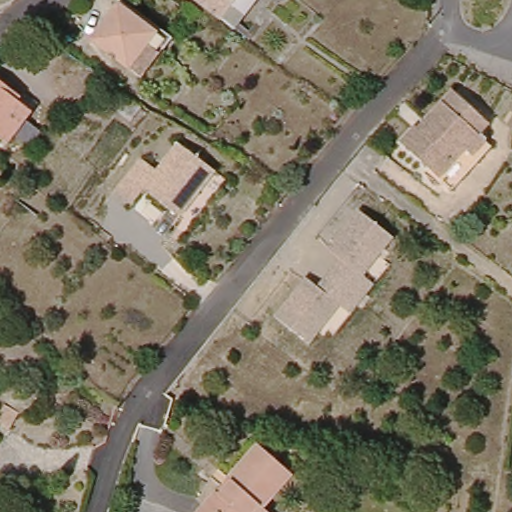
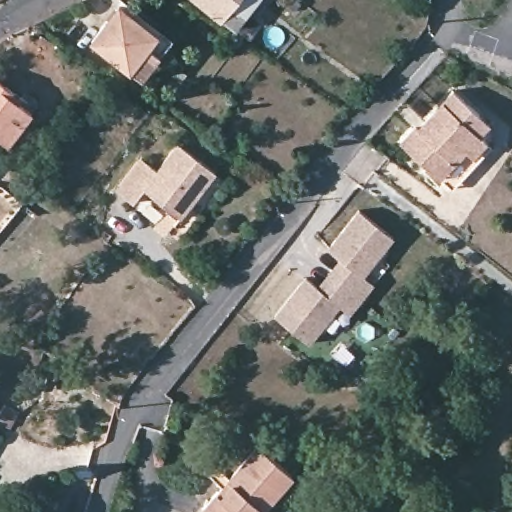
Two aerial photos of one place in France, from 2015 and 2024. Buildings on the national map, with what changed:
unchanged [(88,33),(114,1),(114,0),(120,0),(153,27),(150,31),(144,37),(156,47),(135,72),(124,62),(88,33)]
unchanged [(250,6),(232,27),(221,17),(212,10),(210,14),(201,8),(205,3),(201,0),(254,0),(250,6)]
unchanged [(17,101),(30,111),(7,142),(0,137),(0,81),(20,96),(17,101)]
unchanged [(412,153),(399,142),(414,124),(417,126),(451,86),(477,110),(487,118),(478,130),(484,135),(490,141),(450,187),(438,177),(412,153)]
unchanged [(142,185),(131,199),(115,186),(140,154),(155,166),(177,138),(213,167),(177,213),(142,185)]
unchanged [(305,279),(316,288),(338,258),(330,251),(360,212),(394,241),(362,279),(374,288),(351,312),(341,307),(309,346),(275,317),(305,279)]
unchanged [(3,424),(0,422),(0,398),(1,397),(14,406),(3,424)]
unchanged [(264,505),(270,511),(268,512),(201,512),(223,487),(231,477),(259,442),(293,470),(264,505)]

